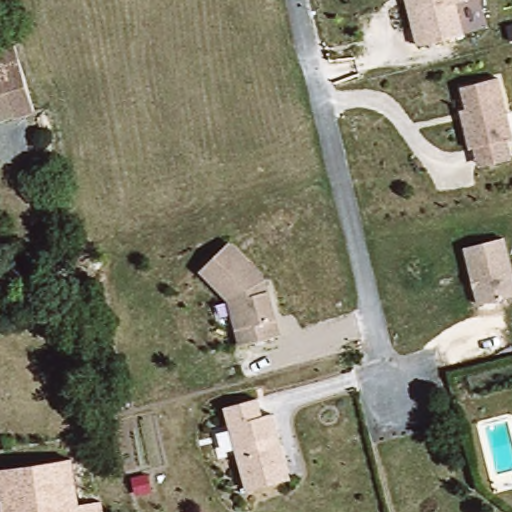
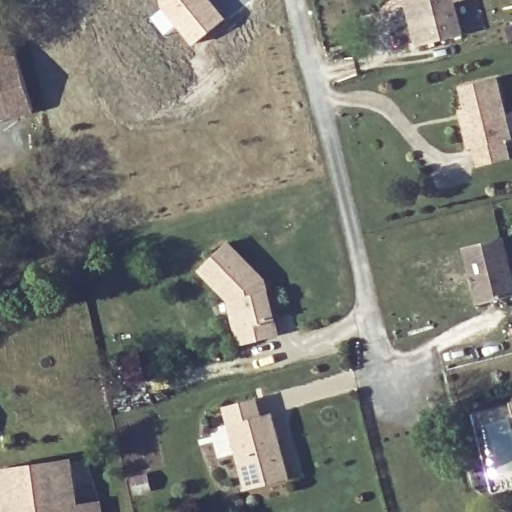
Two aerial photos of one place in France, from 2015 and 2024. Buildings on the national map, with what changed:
new [(159,0),(212,0),(226,18),(192,46),(175,27),(164,36),(149,19),(156,11),(160,8),(159,0)]
unchanged [(414,45),(408,25),(403,0),(453,0),(461,33),(414,45)]
unchanged [(35,111),(13,116),(0,65),(0,53),(16,48),(35,111)]
unchanged [(13,116),(0,120),(0,65),(13,116)]
unchanged [(473,146),(467,148),(463,131),(457,109),(464,107),(458,85),(495,76),(510,137),(503,139),(507,156),(477,164),(473,146)]
unchanged [(502,233),(512,271),(512,291),(477,299),(464,242),(502,233)]
unchanged [(239,344),(228,300),(198,270),(226,242),(263,279),(278,335),(239,344)]
new [(128,385),(121,356),(139,354),(145,380),(128,385)]
unchanged [(249,490),(226,406),(257,397),(262,415),(273,412),(291,477),(249,490)]
unchanged [(72,460),(78,505),(100,502),(102,512),(4,512),(0,485),(0,470),(72,460)]

